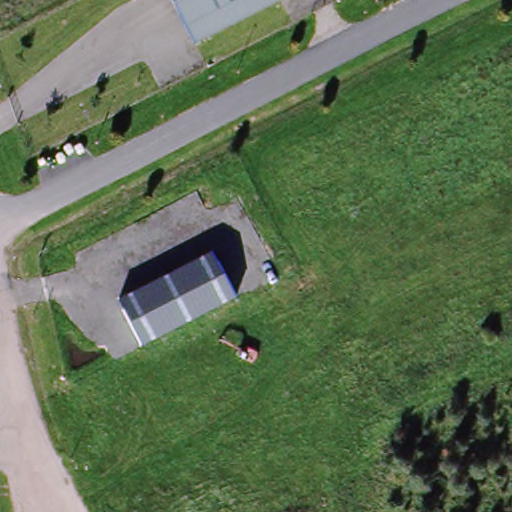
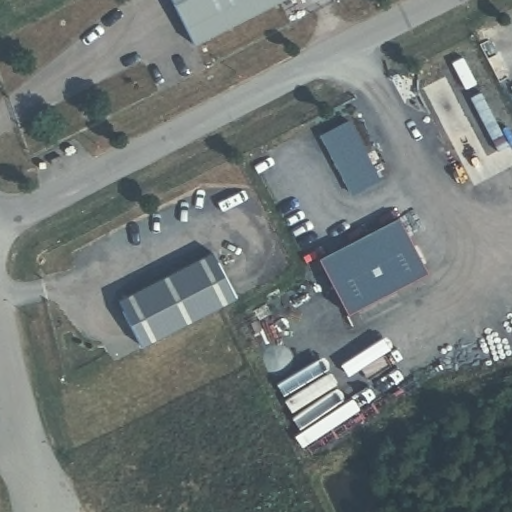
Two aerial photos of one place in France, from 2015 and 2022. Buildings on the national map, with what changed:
unchanged [(175,0),(281,0),(197,44),(175,0)]
new [(349,119),(381,178),(351,194),(320,134),(349,119)]
new [(427,270),(347,312),(318,258),(398,217),(427,270)]
unchanged [(117,300),(210,251),(233,298),(141,346),(117,300)]

